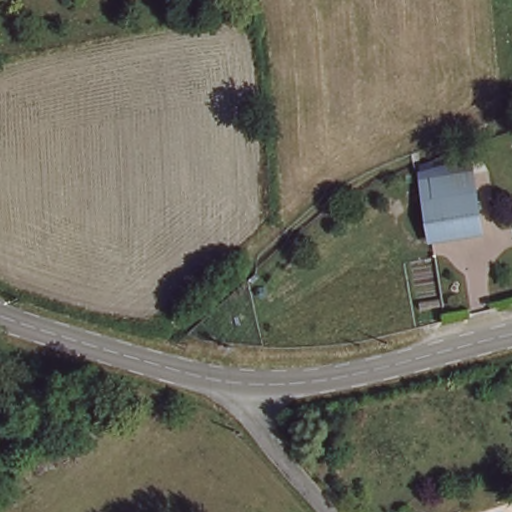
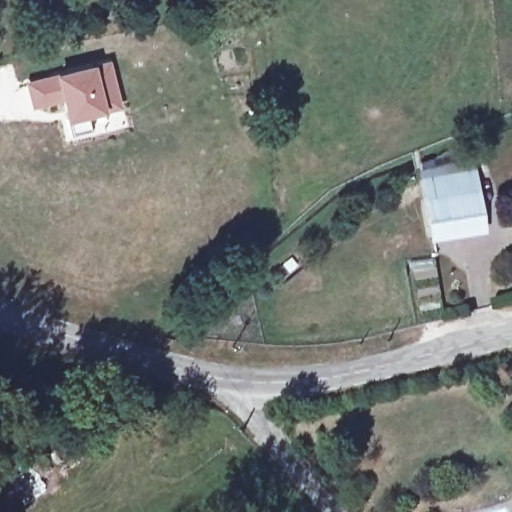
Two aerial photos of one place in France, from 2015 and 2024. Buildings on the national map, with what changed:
new [(86,115),(89,129),(69,133),(66,120),(60,101),(31,108),(24,81),(53,73),(110,59),(120,107),(86,115)]
unchanged [(471,172),(473,193),(422,199),(421,177),(471,172)]
unchanged [(476,230),(426,236),(422,199),(473,193),(476,230)]

